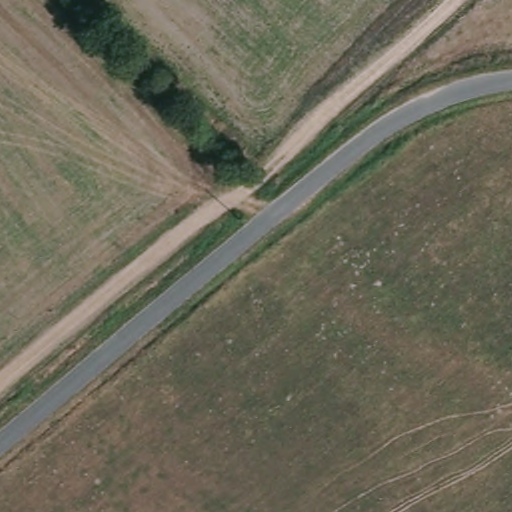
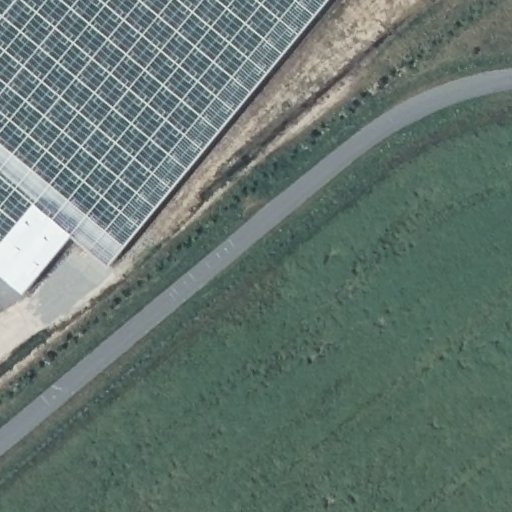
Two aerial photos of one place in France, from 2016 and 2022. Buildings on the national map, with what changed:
new [(76,235),(28,293),(0,269),(0,0),(331,0),(113,266),(76,235)]

